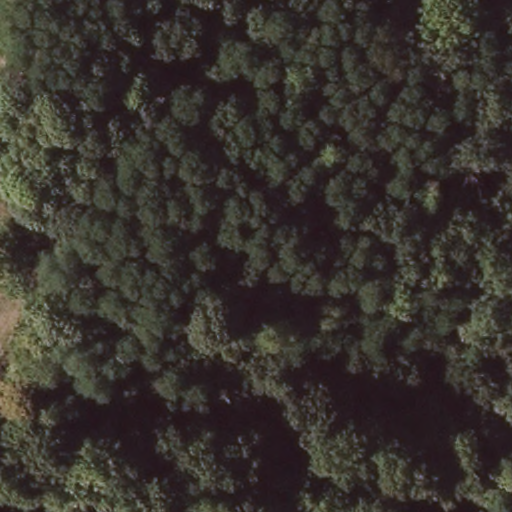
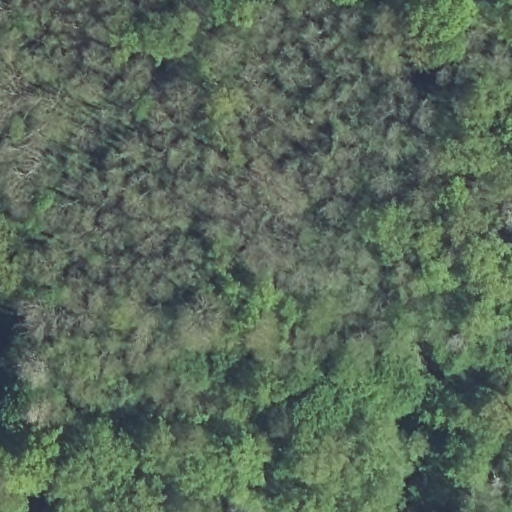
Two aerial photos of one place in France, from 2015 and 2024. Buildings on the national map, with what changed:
[]

